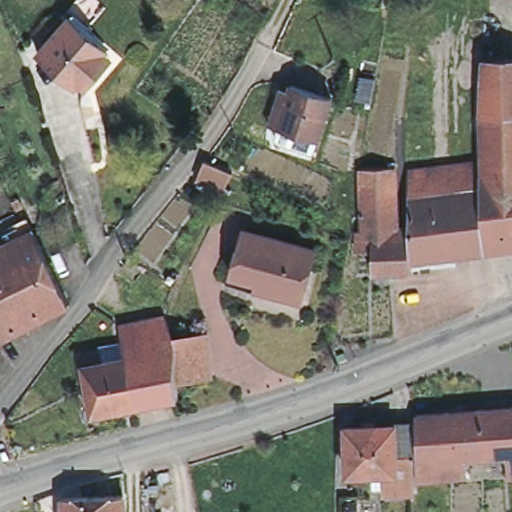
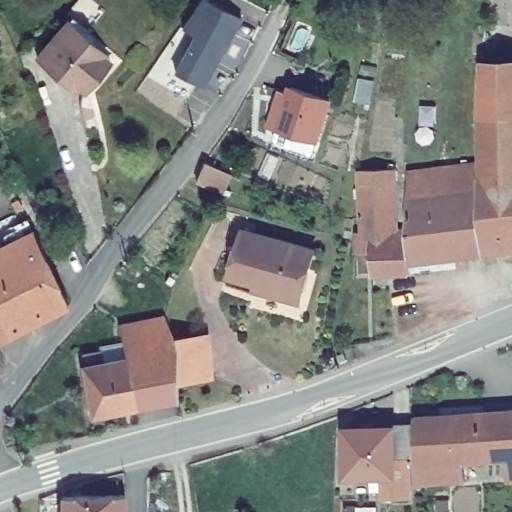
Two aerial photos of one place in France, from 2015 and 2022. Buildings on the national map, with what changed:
new [(205,87),(172,72),(195,35),(181,27),(197,0),(210,0),(242,17),(205,87)]
unchanged [(80,86),(73,81),(71,85),(61,76),(35,54),(32,51),(64,15),(67,18),(91,39),(102,47),(100,50),(106,55),(111,60),(85,91),(80,86)]
unchanged [(512,119),(483,122),(481,61),(512,61),(512,119)]
unchanged [(297,135),(280,129),(271,125),(283,92),(291,95),(293,90),(333,105),(320,137),(318,143),(297,135)]
unchanged [(512,145),(483,149),(483,122),(512,119),(512,145)]
unchanged [(512,167),(486,170),(486,166),(483,166),(483,149),(512,145),(512,167)]
unchanged [(212,162),(233,171),(225,190),(197,179),(204,160),(212,162)]
unchanged [(415,231),(413,203),(412,175),(445,171),(483,166),(486,166),(486,170),(487,194),(490,259),(448,265),(417,268),(415,231)]
unchanged [(512,191),(487,194),(486,170),(512,167),(512,191)]
unchanged [(366,236),(365,174),(400,172),(402,233),(415,231),(417,268),(417,276),(378,278),(378,259),(362,259),(362,236),(366,236)]
unchanged [(512,256),(490,259),(487,194),(512,191),(512,256)]
unchanged [(13,241),(11,242),(7,234),(22,225),(20,222),(33,215),(73,304),(49,317),(13,241)]
unchanged [(256,287),(258,280),(231,273),(243,228),(315,247),(303,291),(301,300),(297,298),(256,287)]
unchanged [(11,242),(13,241),(49,317),(32,326),(0,267),(0,248),(11,242)]
unchanged [(32,326),(2,340),(0,337),(0,267),(32,326)]
unchanged [(176,381),(177,400),(156,404),(142,323),(165,317),(174,341),(208,340),(209,360),(210,380),(176,381)]
unchanged [(93,415),(82,359),(100,355),(100,351),(122,346),(118,329),(142,323),(156,404),(134,408),(93,415)]
unchanged [(5,377),(0,380),(0,364),(5,377)]
unchanged [(415,420),(436,419),(454,417),(512,413),(512,483),(507,483),(506,463),(485,465),(465,466),(465,484),(416,488),(415,470),(415,420)]
unchanged [(383,500),(383,492),(373,492),(373,487),(360,488),(360,480),(346,480),(346,433),(393,432),(412,432),(412,457),(412,479),(413,500),(383,500)]
unchanged [(62,495),(123,492),(124,512),(63,512),(62,495)]

